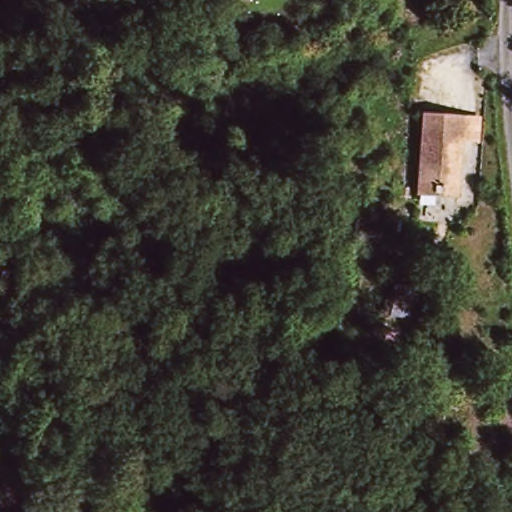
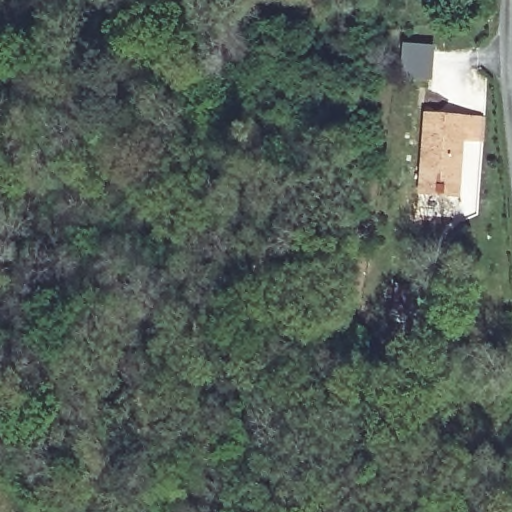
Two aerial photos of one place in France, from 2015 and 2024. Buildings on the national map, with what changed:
new [(400,44),(435,50),(431,78),(396,73),(400,44)]
unchanged [(420,188),(425,138),(427,116),(467,119),(484,121),(483,133),(482,145),(464,144),(460,192),(420,188)]

